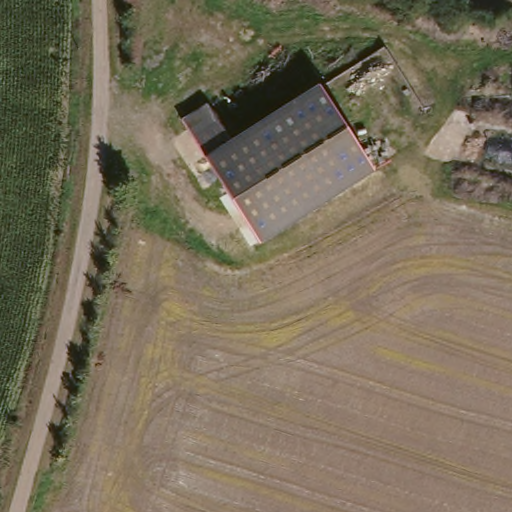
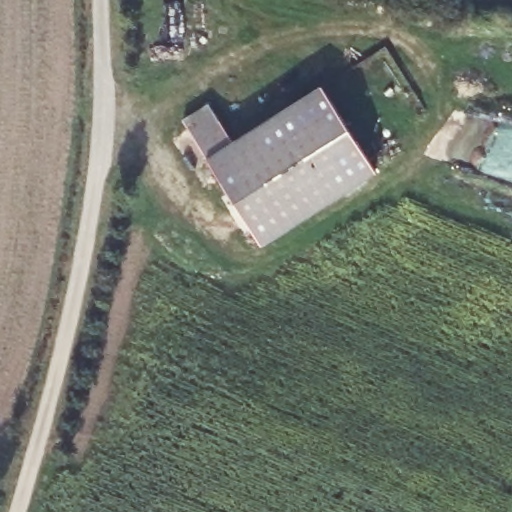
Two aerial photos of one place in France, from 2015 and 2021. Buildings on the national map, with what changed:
unchanged [(262,248),(194,143),(219,127),(231,146),(321,89),(377,174),(262,248)]

